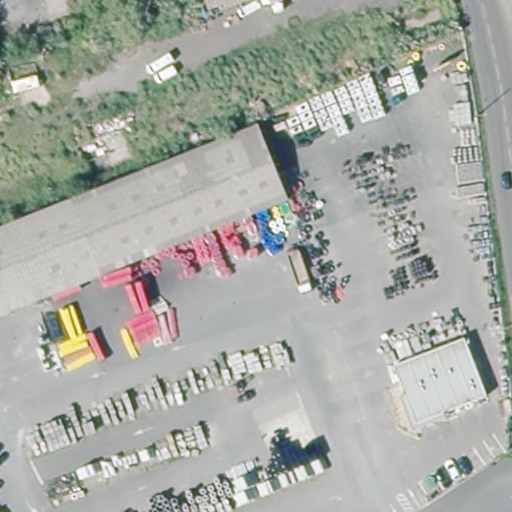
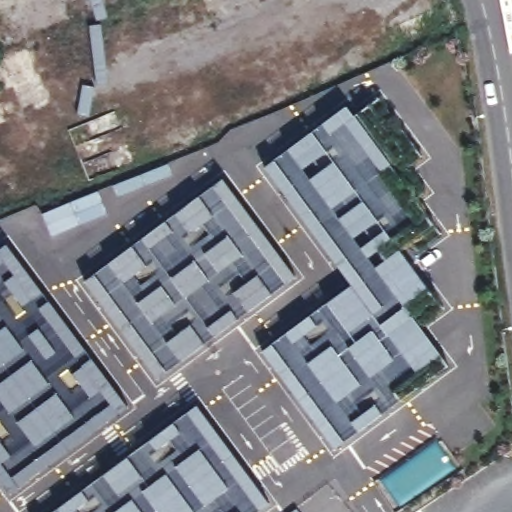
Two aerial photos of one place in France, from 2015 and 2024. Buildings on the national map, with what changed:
unchanged [(242,0),(219,9),(215,0),(242,0)]
new [(357,117),(370,105),(408,155),(395,166),(437,225),(402,251),(438,300),(415,317),(450,367),(340,448),(265,351),(352,287),(266,169),(348,107),(357,117)]
demolished [(255,122),(284,194),(139,254),(110,181),(255,122)]
new [(296,278),(158,380),(85,281),(222,179),(296,278)]
new [(53,236),(44,213),(99,191),(108,214),(53,236)]
new [(10,495),(0,482),(0,249),(8,244),(126,408),(10,495)]
new [(271,506),(262,512),(55,512),(198,405),(271,506)]

